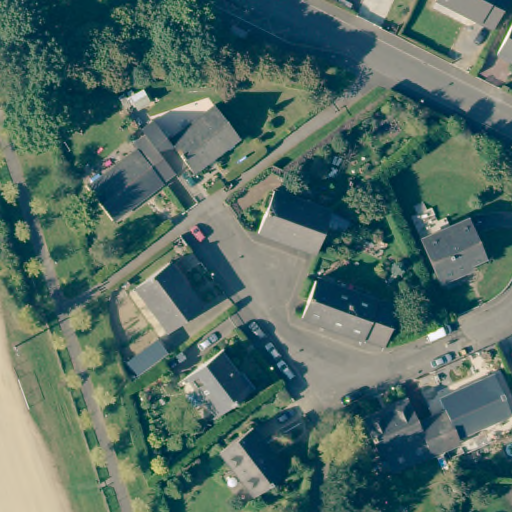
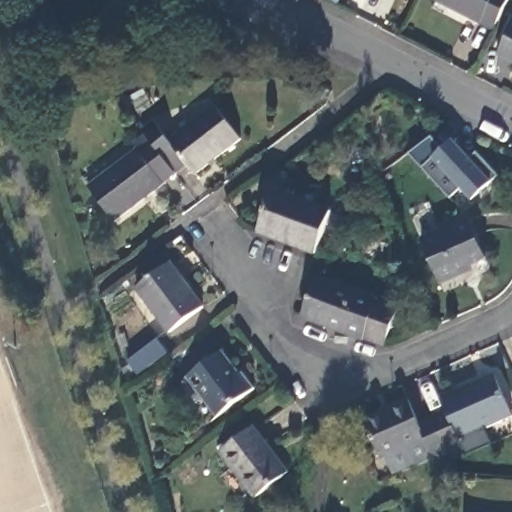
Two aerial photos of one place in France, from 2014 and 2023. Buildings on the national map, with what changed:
unchanged [(440,0),(512,0),(512,2),(498,30),(440,0)]
unchanged [(512,35),(512,60),(502,55),(512,35)]
unchanged [(179,172),(151,136),(147,131),(159,122),(174,141),(220,106),(246,140),(200,175),(193,165),(180,175),(179,172)]
unchanged [(168,182),(169,184),(119,221),(94,188),(143,150),(139,146),(151,136),(179,172),(168,182)]
new [(471,201),(460,189),(450,199),(423,168),(409,153),(432,137),(443,150),(453,139),(471,158),(477,153),(498,176),(471,201)]
unchanged [(258,233),(274,191),(331,212),(316,254),(258,233)]
unchanged [(427,240),(474,219),(491,257),(464,269),(467,273),(446,283),(427,240)]
unchanged [(170,264),(204,308),(170,333),(136,290),(170,264)]
unchanged [(320,281),(342,288),(343,286),(404,308),(389,347),(385,346),(382,345),(369,338),(369,340),(307,317),(320,281)]
new [(158,340),(169,353),(139,377),(129,363),(158,340)]
unchanged [(187,377),(220,352),(239,376),(242,373),(254,389),(218,417),(187,377)]
unchanged [(451,411),(445,397),(499,375),(512,404),(512,418),(464,438),(467,443),(452,450),(437,417),(451,411)]
unchanged [(388,455),(384,456),(369,422),(398,408),(397,406),(413,399),(424,422),(437,417),(452,450),(437,456),(397,473),(388,455)]
unchanged [(253,428),(288,472),(255,497),(221,452),(253,428)]

